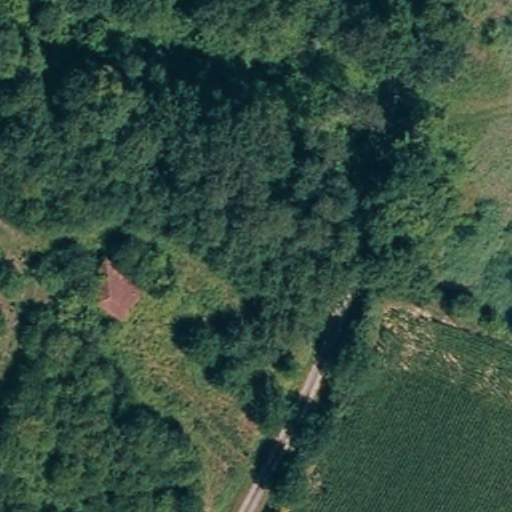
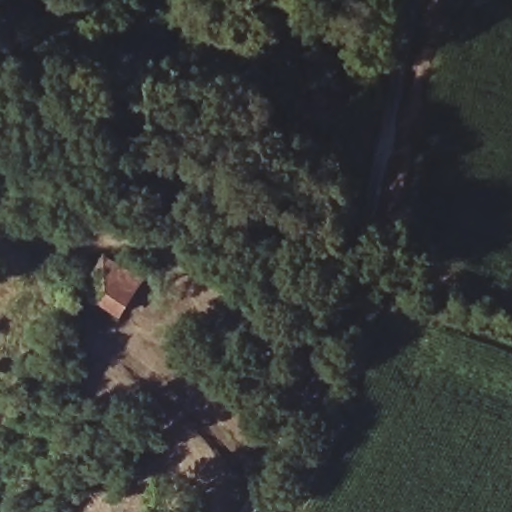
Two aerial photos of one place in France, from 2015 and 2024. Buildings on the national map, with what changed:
unchanged [(121,313),(84,288),(104,250),(145,271),(121,313)]

